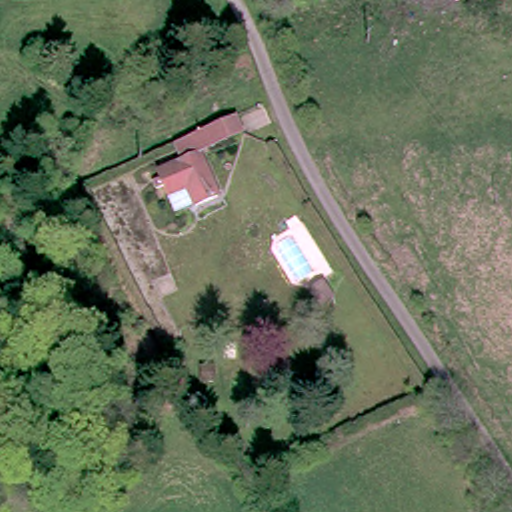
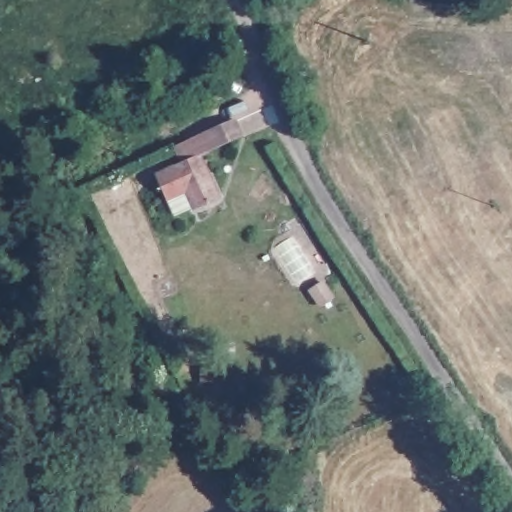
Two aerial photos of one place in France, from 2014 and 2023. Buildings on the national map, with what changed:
unchanged [(160,173),(167,169),(161,154),(192,136),(223,121),(231,136),(201,153),(221,191),(198,203),(189,186),(171,195),(160,173)]
unchanged [(324,310),(314,295),(326,287),(336,301),(324,310)]

